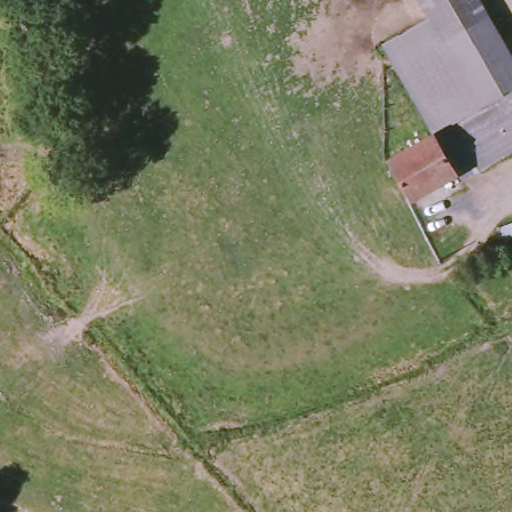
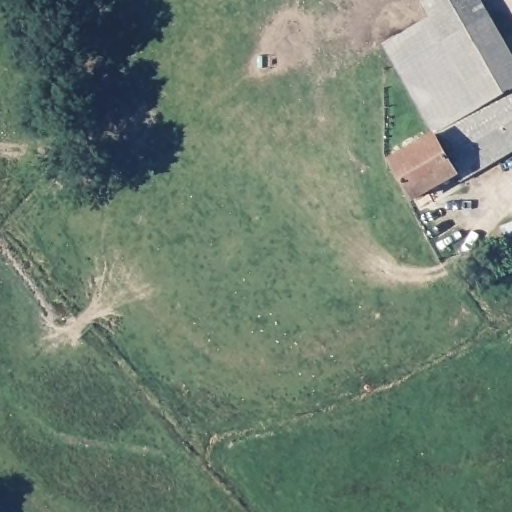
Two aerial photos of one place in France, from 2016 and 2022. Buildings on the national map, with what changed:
unchanged [(397,32),(423,16),(414,0),(475,0),(512,57),(512,105),(487,121),(485,122),(444,148),(438,140),(400,79),(380,42),(397,32)]
unchanged [(485,122),(487,121),(512,105),(512,158),(469,186),(465,180),(421,207),(396,166),(438,140),(444,148),(485,122)]
unchanged [(503,230),(512,227),(512,244),(507,246),(503,230)]

